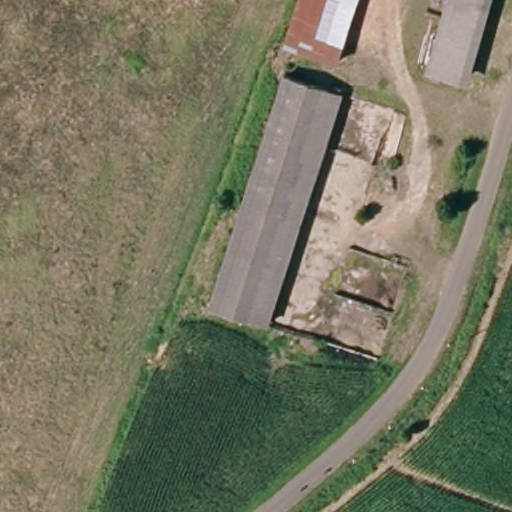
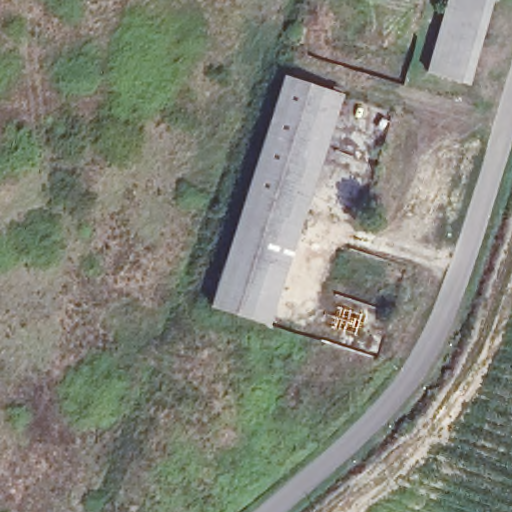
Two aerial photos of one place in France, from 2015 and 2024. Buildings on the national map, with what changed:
demolished [(334,66),(285,48),(303,0),(358,0),(334,66)]
unchanged [(430,72),(451,0),(486,0),(462,82),(430,72)]
unchanged [(263,138),(281,82),(337,100),(327,130),(305,123),(297,149),(263,138)]
unchanged [(305,123),(327,130),(263,326),(207,307),(263,138),(297,149),(305,123)]

